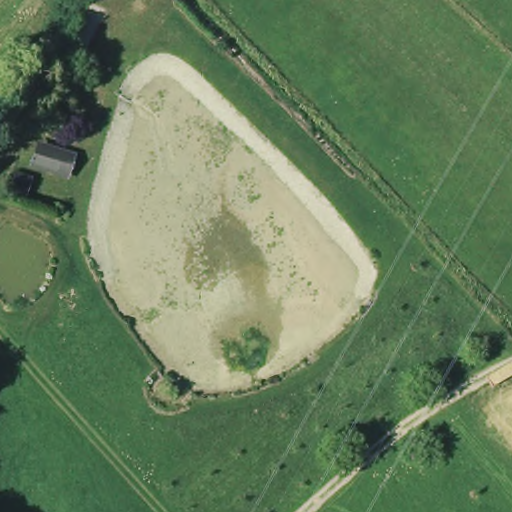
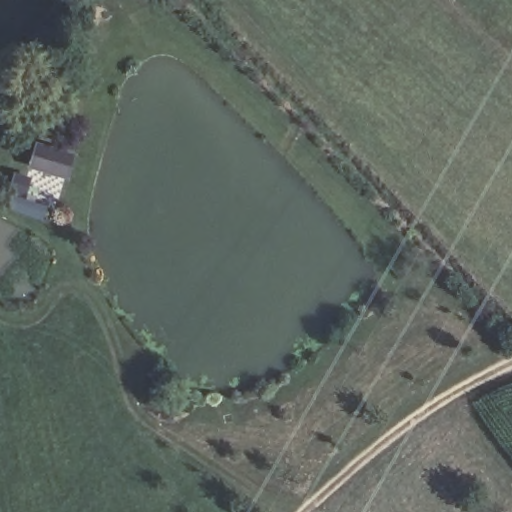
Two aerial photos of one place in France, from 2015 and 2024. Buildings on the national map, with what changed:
unchanged [(79,152),(72,177),(30,169),(38,140),(79,152)]

